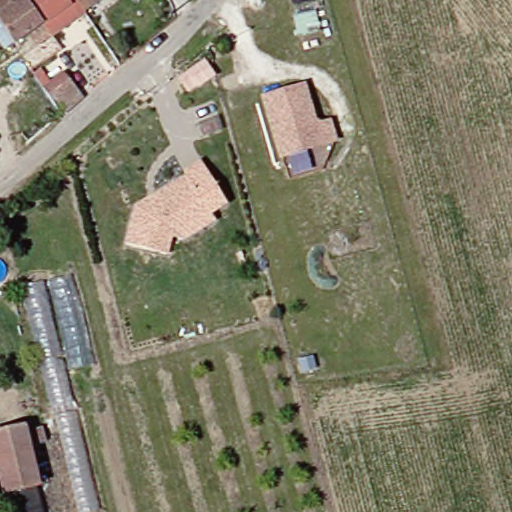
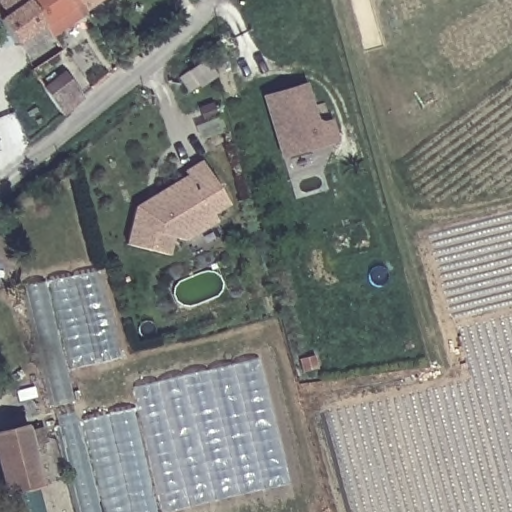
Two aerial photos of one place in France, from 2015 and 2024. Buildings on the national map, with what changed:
unchanged [(21,45),(0,14),(0,0),(34,0),(51,25),(21,45)]
unchanged [(59,36),(51,25),(34,0),(86,0),(93,11),(59,36)]
unchanged [(86,0),(108,0),(93,11),(86,0)]
unchanged [(67,70),(81,90),(60,108),(45,88),(67,70)]
unchanged [(306,82),(315,119),(322,125),(332,122),(337,139),(283,154),(267,93),(306,82)]
unchanged [(184,237),(174,235),(172,253),(130,247),(135,210),(184,175),(181,171),(197,160),(226,200),(212,211),(215,215),(184,237)]
new [(49,282),(95,271),(117,357),(70,369),(49,282)]
unchanged [(99,512),(76,512),(23,285),(47,282),(99,512)]
new [(254,360),(285,485),(167,512),(161,512),(131,388),(254,360)]
new [(81,421),(130,410),(154,512),(104,512),(81,421)]
unchanged [(7,488),(6,487),(0,466),(0,427),(24,419),(42,476),(7,488)]
unchanged [(7,488),(42,476),(51,512),(13,512),(7,488)]

